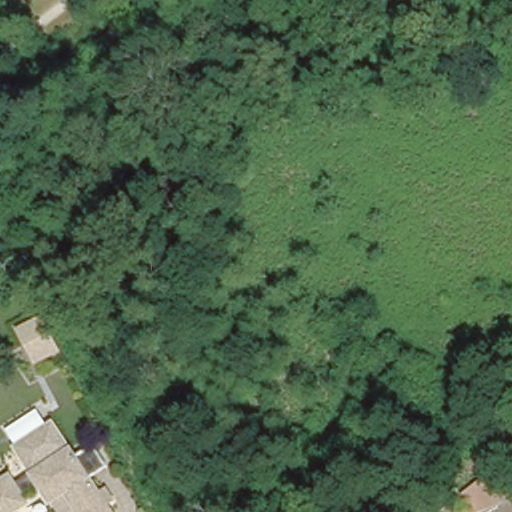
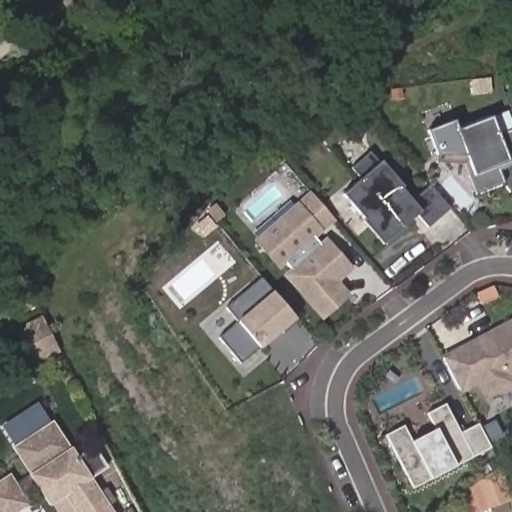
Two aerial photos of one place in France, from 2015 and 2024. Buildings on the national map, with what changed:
new [(499,134),(512,130),(512,166),(501,171),(504,183),(477,193),(467,164),(438,161),(439,152),(430,131),(456,121),(458,129),(492,116),(499,134)]
new [(362,179),(354,169),(371,153),(381,164),(382,162),(404,187),(402,188),(413,201),(430,184),(452,208),(428,228),(416,215),(384,245),(363,221),(366,219),(344,194),(362,179)]
new [(356,269),(341,282),(352,295),(323,320),(284,274),(292,268),(287,262),(280,269),(254,239),(299,201),(311,190),(337,221),(323,231),(317,237),(321,242),(327,236),(356,269)]
new [(239,320),(227,306),(262,276),(299,320),(285,332),(282,328),(242,362),(220,336),(239,320)]
new [(478,385),(462,392),(444,355),(512,319),(512,387),(486,399),(478,385)]
new [(447,404),(463,433),(480,424),(493,448),(476,457),(458,466),(432,480),(415,489),(387,435),(404,425),(413,441),(437,429),(428,413),(447,404)]
unchanged [(50,422),(72,456),(31,481),(11,447),(50,422)]
unchanged [(12,480),(19,489),(31,481),(72,456),(107,512),(57,512),(55,508),(51,510),(38,489),(24,499),(27,505),(30,509),(25,512),(0,512),(0,487),(12,480)]
unchanged [(460,498),(485,477),(502,471),(512,502),(497,507),(481,512),(466,512),(460,498)]

